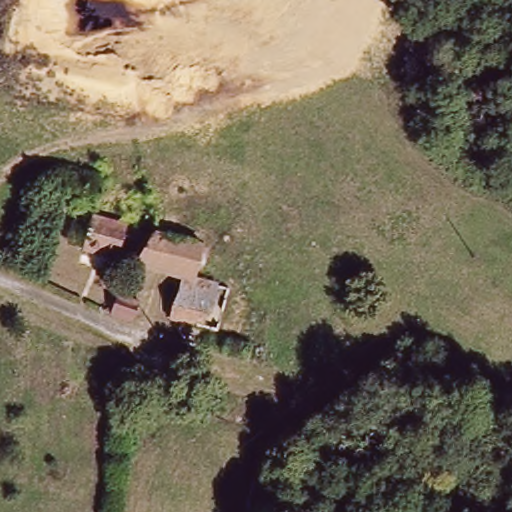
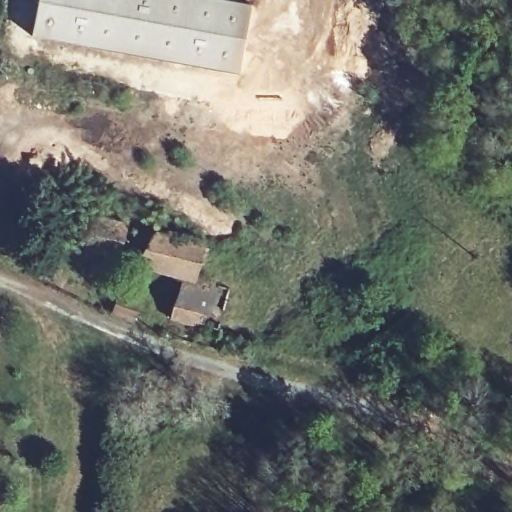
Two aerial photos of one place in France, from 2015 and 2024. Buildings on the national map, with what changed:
new [(253,5),(240,75),(31,37),(38,0),(226,0),(253,5)]
unchanged [(80,251),(90,217),(126,228),(116,262),(80,251)]
unchanged [(174,281),(132,270),(150,239),(200,253),(191,284),(218,289),(206,334),(163,322),(174,281)]
unchanged [(132,321),(105,310),(112,290),(140,301),(132,321)]

